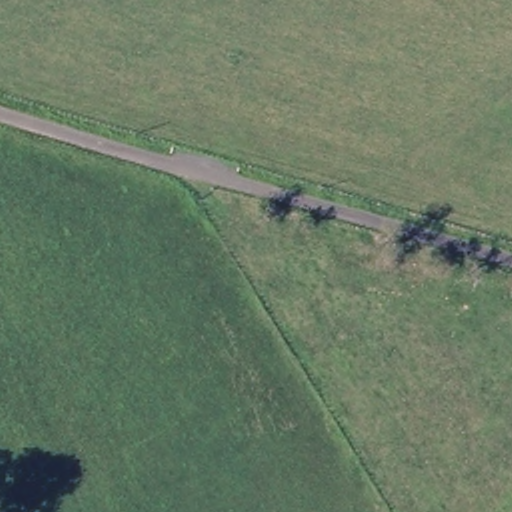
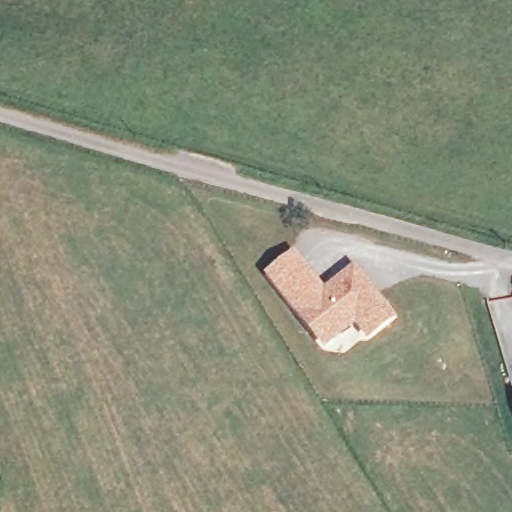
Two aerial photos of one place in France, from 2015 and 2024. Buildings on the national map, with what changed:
new [(324,287),(355,264),(398,317),(369,342),(356,325),(323,349),(263,273),(296,249),(324,287)]

